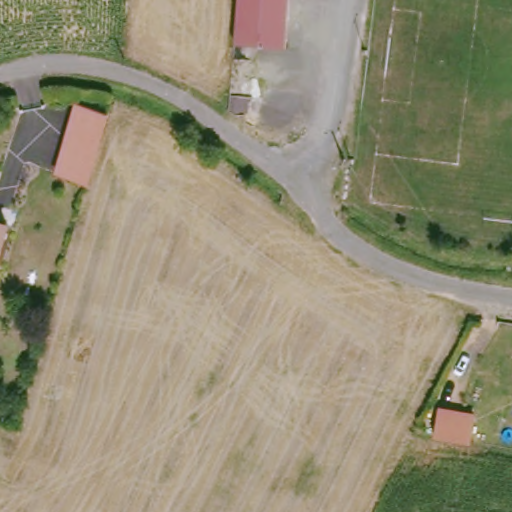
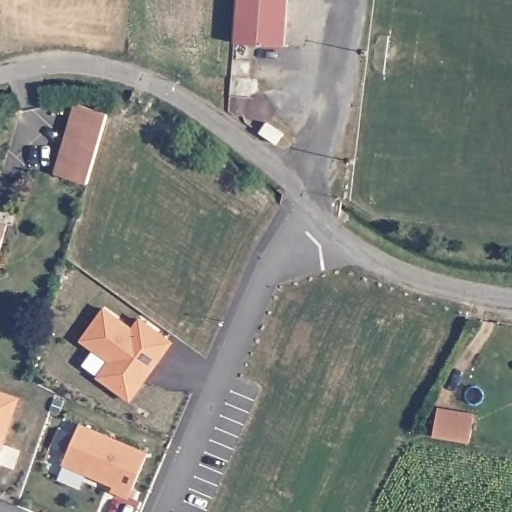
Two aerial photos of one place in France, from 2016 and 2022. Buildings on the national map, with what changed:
unchanged [(282,45),(233,40),(237,0),(286,0),(282,45)]
unchanged [(56,172),(77,102),(109,112),(87,181),(56,172)]
unchanged [(8,218),(0,246),(0,215),(8,218)]
new [(131,400),(100,378),(112,362),(83,341),(105,310),(134,331),(141,320),(172,343),(153,369),(145,380),(131,400)]
new [(443,408),(478,414),(474,440),(438,435),(443,408)]
new [(63,465),(80,425),(148,455),(130,498),(112,491),(115,486),(63,465)]

